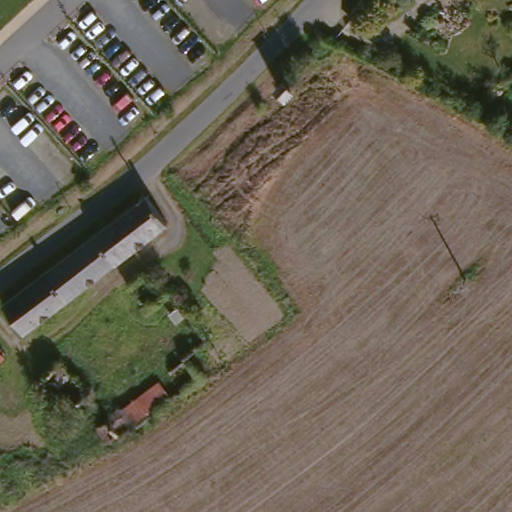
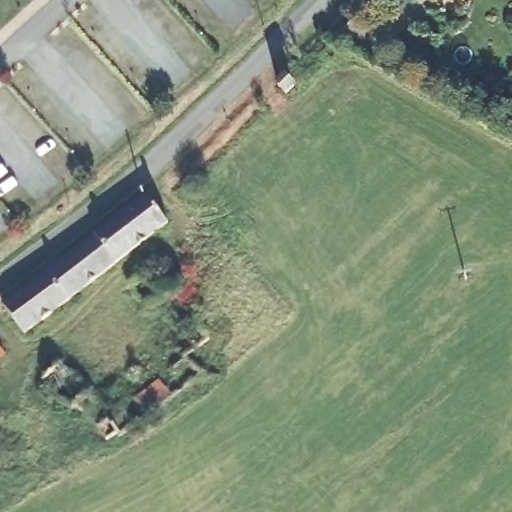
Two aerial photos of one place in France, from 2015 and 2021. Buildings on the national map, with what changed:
unchanged [(173,228),(29,339),(8,310),(151,200),(173,228)]
unchanged [(0,347),(10,359),(0,368),(0,347)]
unchanged [(93,388),(90,395),(99,401),(84,416),(75,408),(71,411),(40,382),(59,361),(93,388)]
unchanged [(176,399),(140,429),(128,411),(164,385),(176,399)]

